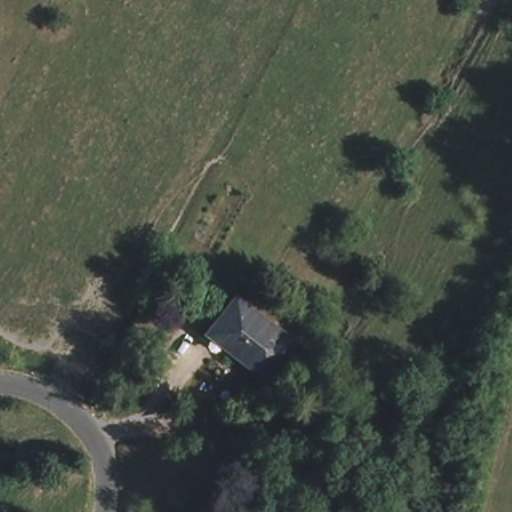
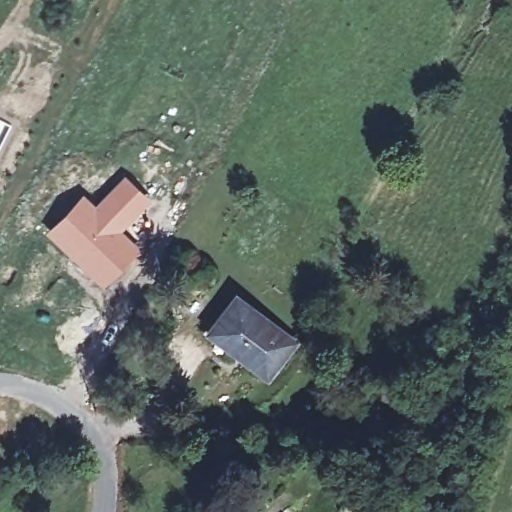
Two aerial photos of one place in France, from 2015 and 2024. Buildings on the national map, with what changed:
new [(83,192),(95,202),(124,173),(153,202),(125,231),(142,251),(103,290),(45,232),(83,192)]
unchanged [(234,297),(292,341),(269,373),(246,357),(241,365),(205,339),(210,331),(234,297)]
unchanged [(347,502),(355,512),(340,512),(337,509),(347,502)]

